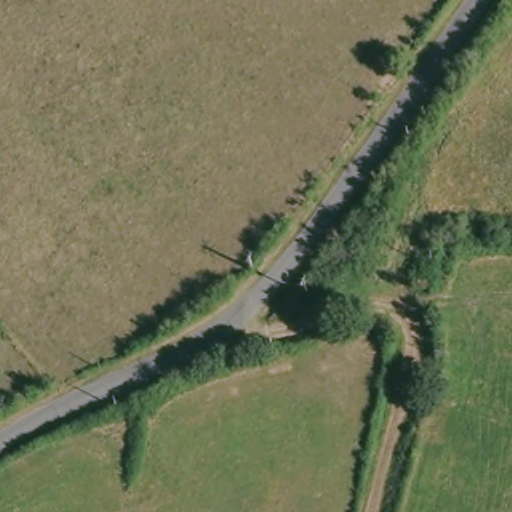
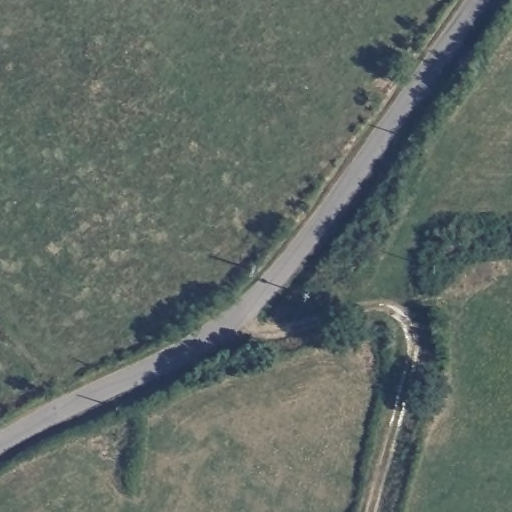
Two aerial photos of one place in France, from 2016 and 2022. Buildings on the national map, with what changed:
unchanged [(320,274),(325,279),(318,284),(314,280),(320,274)]

